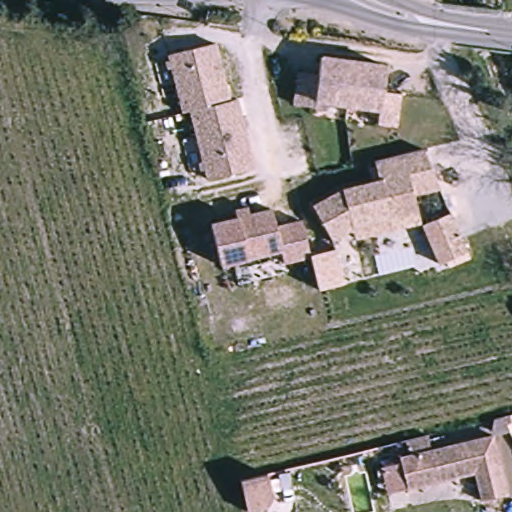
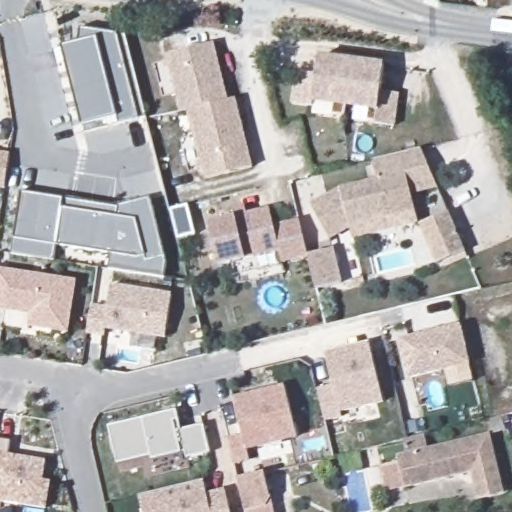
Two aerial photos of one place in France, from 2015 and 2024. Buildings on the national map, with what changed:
new [(119,123),(118,116),(83,125),(65,47),(81,42),(82,29),(128,35),(149,117),(119,123)]
unchanged [(205,178),(188,109),(181,110),(176,93),(167,53),(213,42),(224,87),(227,100),(235,98),(252,166),(205,178)]
unchanged [(381,65),(386,65),(384,83),(402,85),(399,117),(380,115),(382,100),(317,93),(316,108),(295,106),(298,74),(300,74),(318,76),(318,72),(320,59),(381,65)]
unchanged [(437,263),(419,224),(353,239),(351,229),(331,240),(310,204),(340,187),(379,179),(374,159),(423,147),(439,189),(413,194),(421,222),(449,210),(468,250),(437,263)]
new [(0,190),(0,152),(10,153),(5,191),(0,190)]
new [(60,246),(57,260),(14,255),(22,194),(65,200),(60,246)]
new [(119,206),(149,197),(166,263),(164,278),(108,267),(109,254),(60,246),(65,200),(119,206)]
unchanged [(299,220),(308,256),(281,262),(279,251),(218,265),(208,224),(235,217),(233,210),(245,207),(247,215),(270,210),(274,226),(299,220)]
unchanged [(343,283),(317,290),(308,256),(334,248),(343,283)]
new [(69,332),(27,326),(29,315),(0,309),(0,268),(78,280),(69,332)]
new [(173,295),(165,338),(106,328),(104,337),(87,335),(92,305),(107,307),(110,284),(173,295)]
new [(460,323),(471,365),(407,380),(397,340),(460,323)]
new [(332,382),(325,353),(369,342),(384,403),(341,413),(342,418),(325,422),(316,388),(332,382)]
new [(241,431),(233,398),(284,384),(297,438),(246,451),(250,462),(235,466),(228,439),(241,431)]
new [(142,418),(176,410),(182,430),(203,425),(210,452),(187,459),(185,452),(181,453),(151,461),(150,456),(118,465),(108,426),(142,418)]
new [(0,503),(0,440),(11,441),(9,454),(47,460),(44,481),(52,482),(48,510),(0,503)]
unchanged [(427,440),(430,457),(487,442),(505,500),(477,506),(470,481),(407,500),(398,465),(408,462),(404,445),(427,440)]
unchanged [(265,461),(272,492),(246,499),(238,468),(265,461)]
new [(207,492),(225,489),(231,512),(142,512),(138,496),(203,480),(207,492)]

